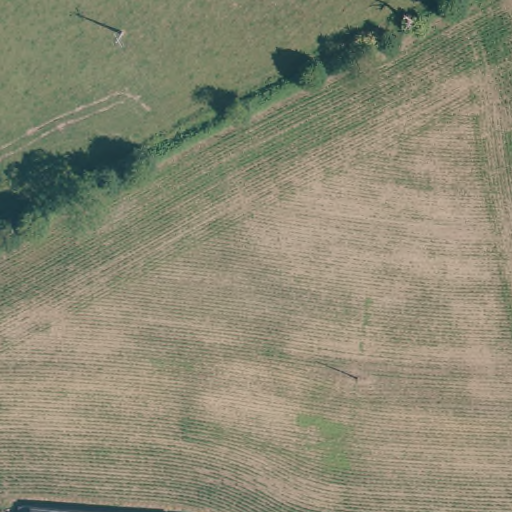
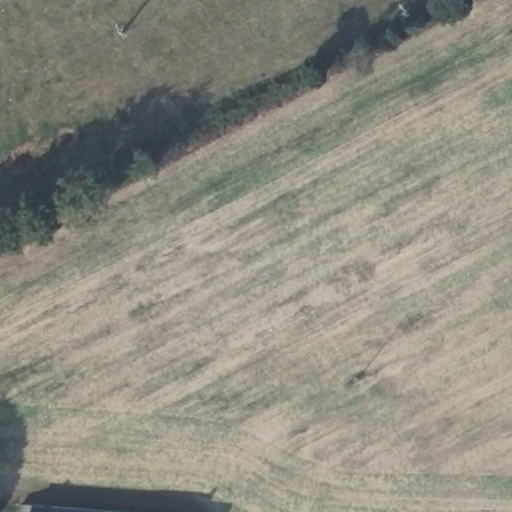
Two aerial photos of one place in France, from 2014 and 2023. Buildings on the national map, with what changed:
unchanged [(31,502),(117,508),(137,510),(160,512),(31,512),(31,502)]

